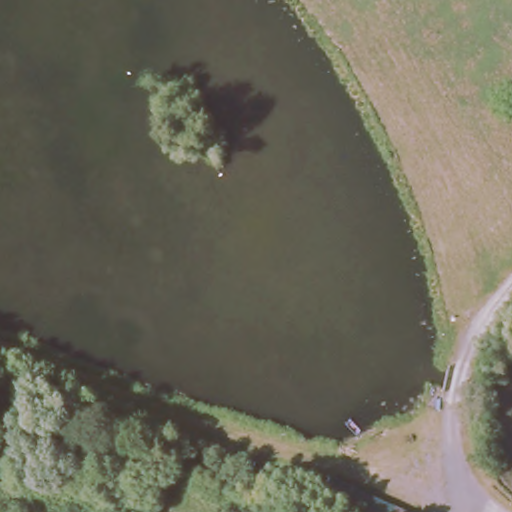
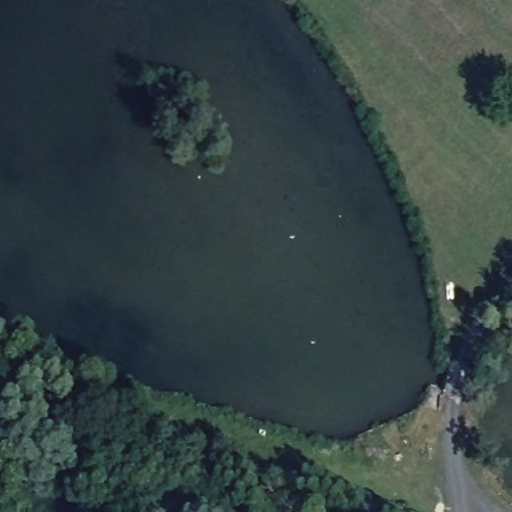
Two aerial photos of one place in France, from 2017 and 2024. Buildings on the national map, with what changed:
unchanged [(332,476),(408,512),(337,512),(297,493),(306,474),(328,484),(332,476)]

